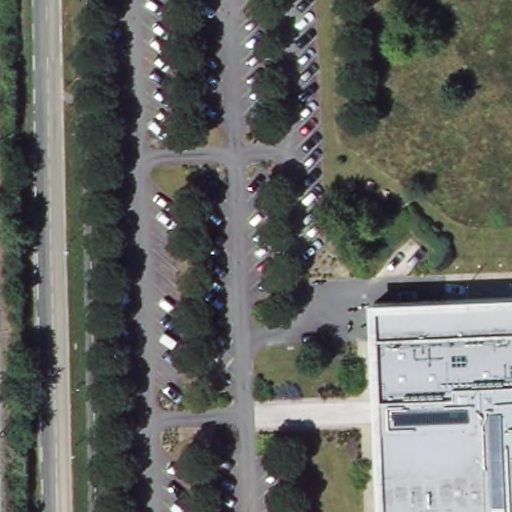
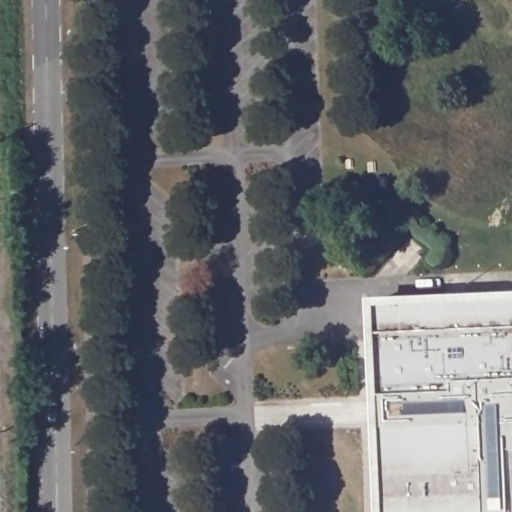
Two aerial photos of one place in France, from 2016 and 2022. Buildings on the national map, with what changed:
unchanged [(512,299),(512,512),(385,512),(379,303),(512,299)]

